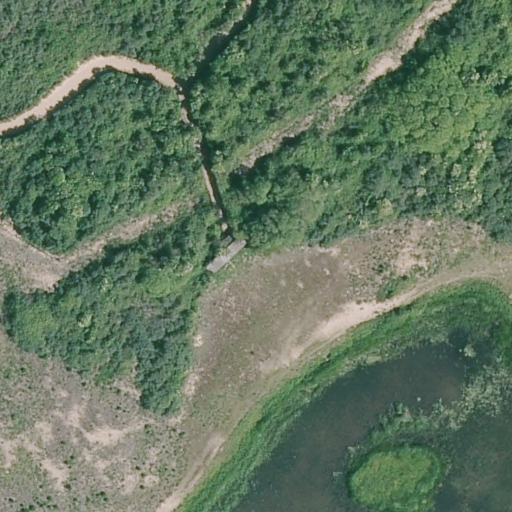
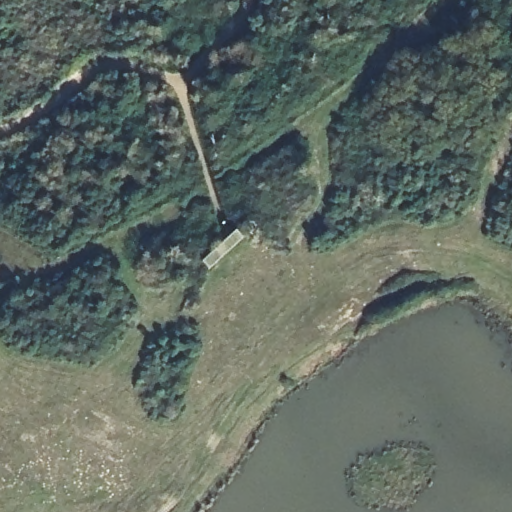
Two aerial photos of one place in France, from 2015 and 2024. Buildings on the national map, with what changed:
[]

